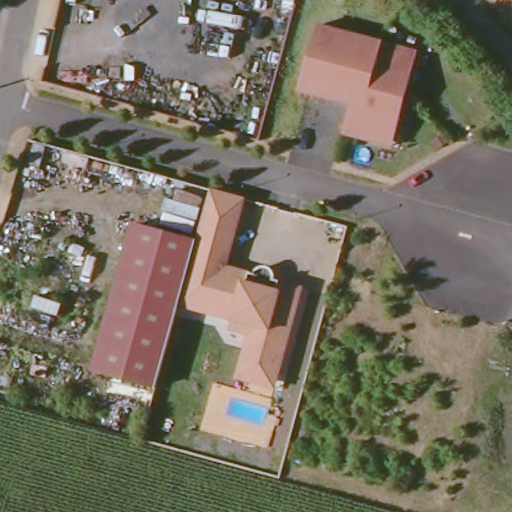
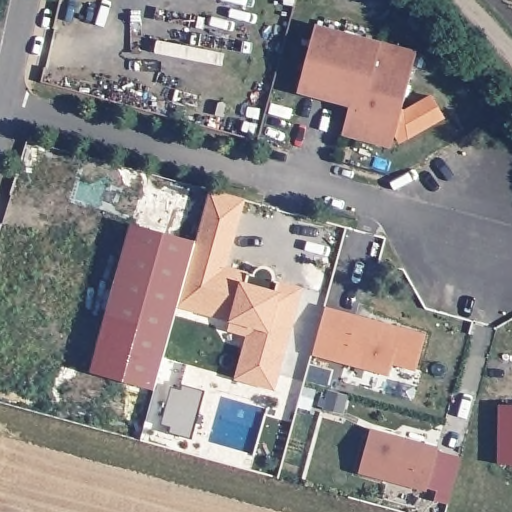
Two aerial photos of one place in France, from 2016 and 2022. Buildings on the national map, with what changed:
unchanged [(380,144),(359,137),(360,132),(347,129),(353,106),(301,92),(318,27),(417,54),(397,134),(393,147),(380,144)]
unchanged [(235,380),(246,338),(229,332),(232,323),(235,315),(181,307),(157,393),(147,389),(189,238),(199,245),(210,191),(245,200),(230,268),(252,274),(254,272),(260,268),(270,268),(274,272),(277,277),(277,282),(303,287),(277,395),(235,380)]
unchanged [(124,218),(189,238),(147,389),(89,373),(124,218)]
new [(393,364),(389,376),(313,355),(327,306),(427,334),(417,370),(393,364)]
new [(499,465),(500,405),(512,405),(512,465),(499,465)]
new [(361,472),(372,428),(440,447),(428,490),(361,472)]

